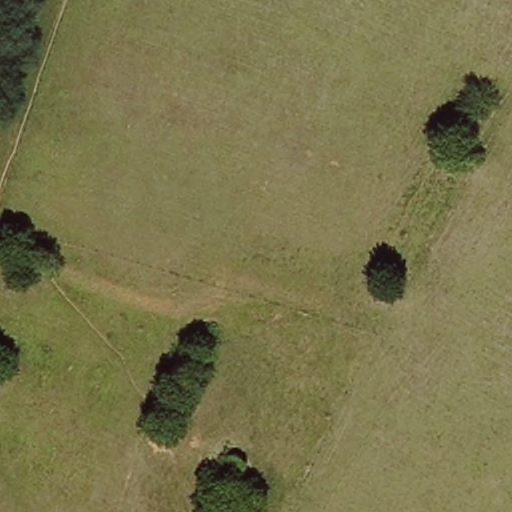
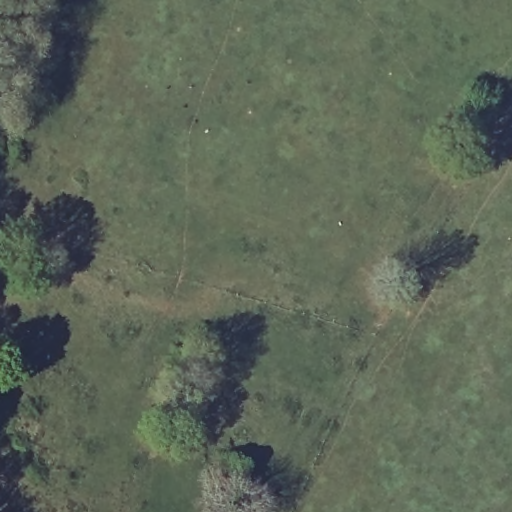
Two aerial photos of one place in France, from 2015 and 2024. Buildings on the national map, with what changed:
unchanged [(229,441),(253,450),(244,473),(221,465),(229,441)]

